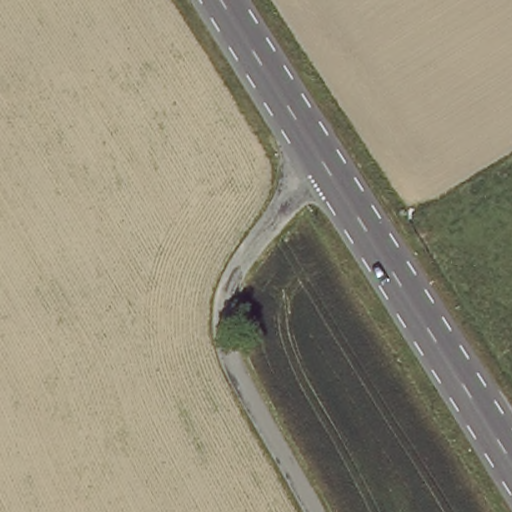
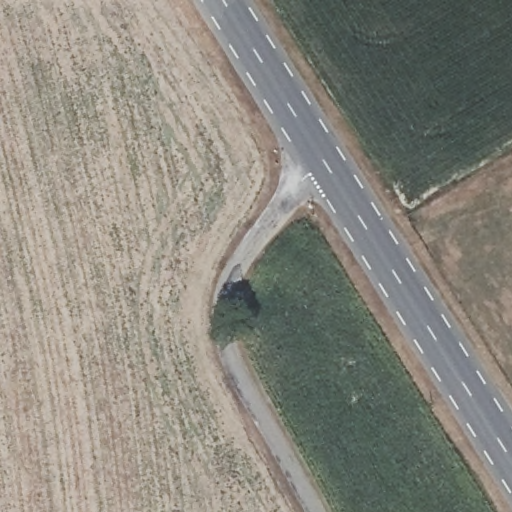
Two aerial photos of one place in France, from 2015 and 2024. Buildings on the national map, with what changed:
[]

